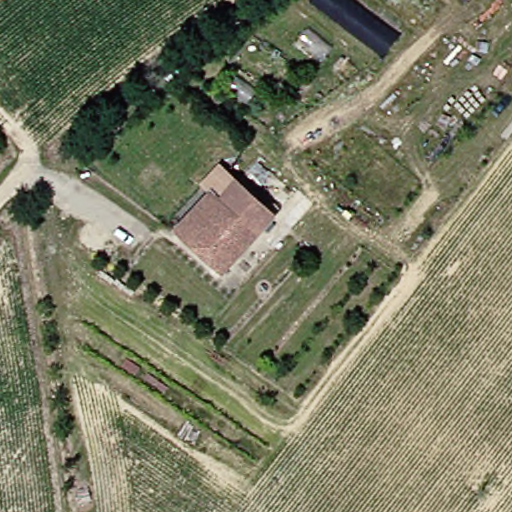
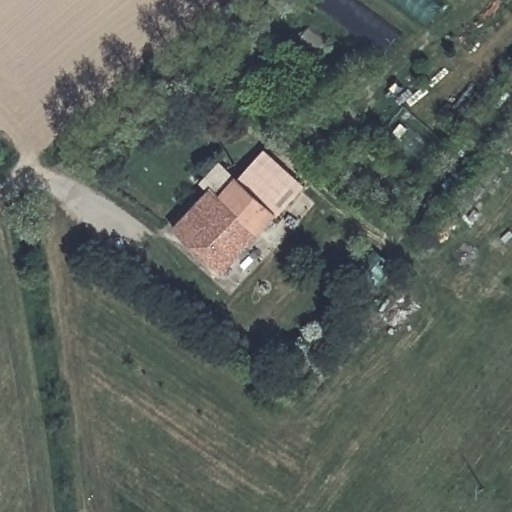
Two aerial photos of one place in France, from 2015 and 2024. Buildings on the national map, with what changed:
unchanged [(308,4),(311,0),(337,0),(388,36),(377,52),(308,4)]
new [(279,217),(276,214),(239,179),(265,148),(306,186),(279,217)]
unchanged [(218,197),(237,177),(276,214),(258,233),(218,197)]
unchanged [(228,275),(222,269),(218,273),(172,227),(209,188),(218,197),(258,233),(250,241),(256,246),(228,275)]

